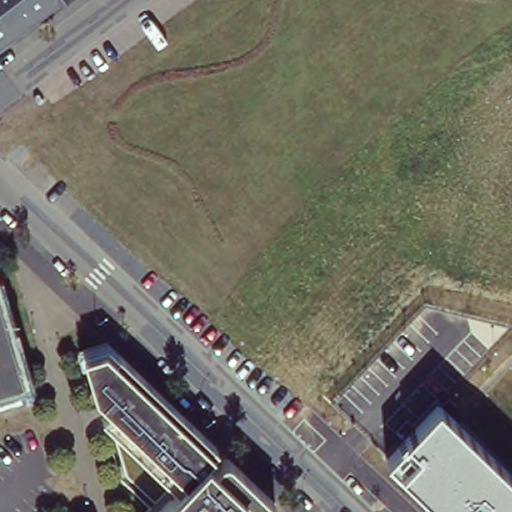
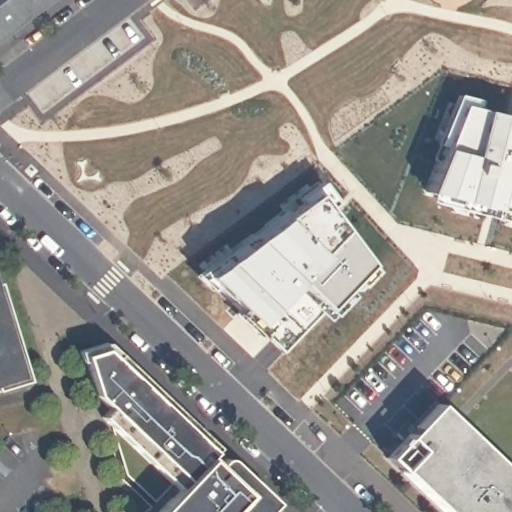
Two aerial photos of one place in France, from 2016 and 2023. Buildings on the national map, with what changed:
unchanged [(45,7),(39,12),(35,9),(0,35),(0,0),(46,0),(42,4),(45,7)]
unchanged [(53,0),(55,0),(54,1),(53,0)]
new [(436,145),(428,141),(441,102),(512,120),(512,221),(423,200),(436,145)]
new [(312,182),(330,200),(321,208),(370,268),(323,316),(317,310),(281,347),(268,335),(238,305),(209,278),(205,284),(195,273),(312,182)]
unchanged [(31,386),(0,396),(0,280),(3,290),(31,386)]
unchanged [(179,492),(101,421),(95,401),(84,362),(106,352),(214,456),(209,461),(217,470),(220,467),(223,465),(225,465),(230,467),(251,487),(273,508),(269,512),(161,512),(179,492)]
unchanged [(436,402),(512,474),(512,512),(447,512),(387,456),(436,402)]

